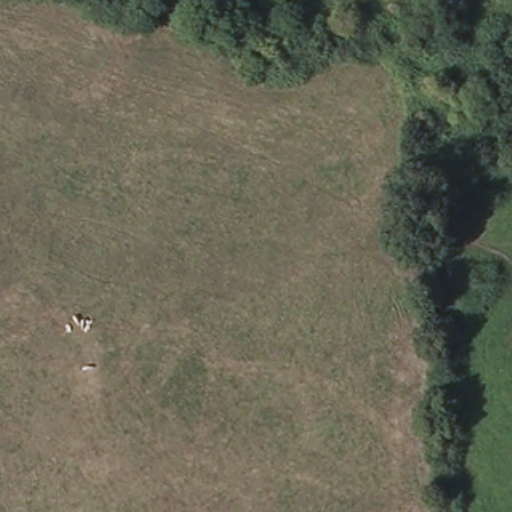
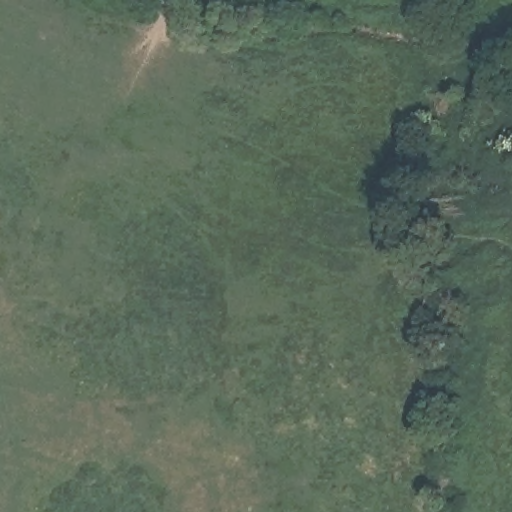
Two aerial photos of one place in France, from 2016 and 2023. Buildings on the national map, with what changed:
[]

